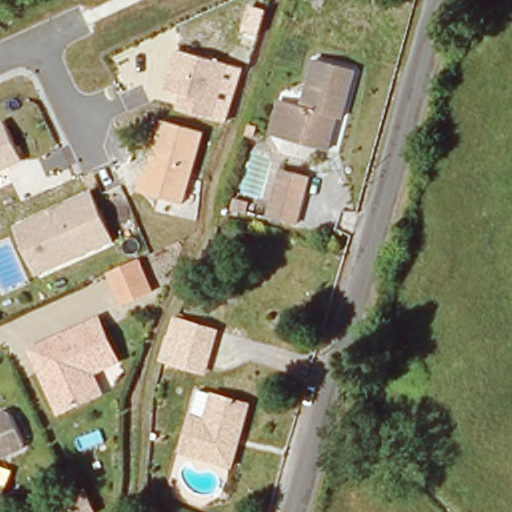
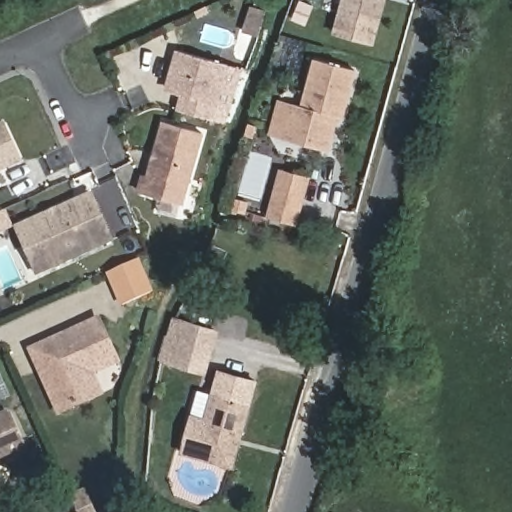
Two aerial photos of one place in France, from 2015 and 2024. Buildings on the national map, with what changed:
new [(375,45),(332,34),(341,0),(386,0),(375,45)]
unchanged [(216,122),(175,111),(180,94),(164,89),(176,49),(232,65),(216,122)]
unchanged [(278,98),(297,104),(307,108),(320,61),(359,72),(346,120),(341,119),(331,153),(287,140),(267,134),(278,98)]
unchanged [(186,203),(142,192),(161,119),(206,133),(186,203)]
unchanged [(0,123),(2,122),(22,164),(0,173),(0,123)]
unchanged [(298,228),(267,219),(280,168),(312,177),(298,228)]
unchanged [(34,277),(12,226),(92,192),(115,242),(34,277)]
unchanged [(156,293),(121,308),(106,273),(141,259),(156,293)]
unchanged [(35,352),(102,318),(114,345),(69,370),(77,385),(86,382),(92,397),(94,403),(62,415),(58,405),(35,352)]
unchanged [(207,371),(178,362),(167,359),(177,318),(189,321),(220,329),(207,371)]
unchanged [(86,382),(77,385),(69,370),(114,345),(120,358),(95,371),(97,376),(107,394),(109,397),(94,403),(92,397),(86,382)]
unchanged [(235,464),(184,450),(195,414),(209,418),(221,370),(259,379),(235,464)]
unchanged [(0,457),(0,410),(9,407),(11,411),(27,446),(0,457)]
unchanged [(84,484),(96,512),(80,512),(71,491),(84,484)]

